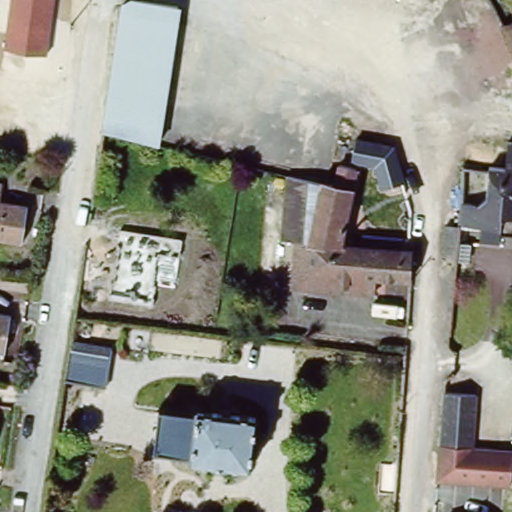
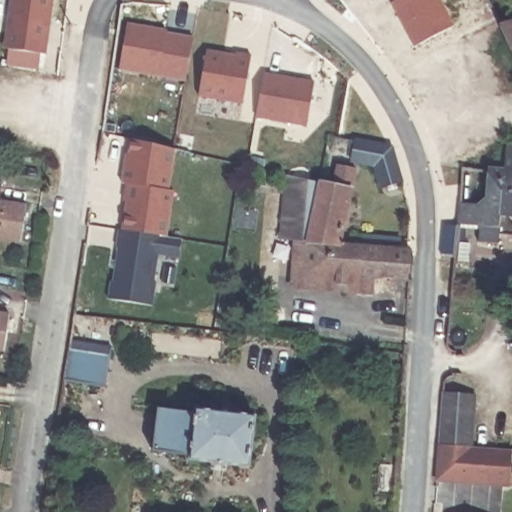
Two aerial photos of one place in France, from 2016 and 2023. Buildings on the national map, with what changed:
unchanged [(10,0),(53,0),(47,54),(4,49),(10,0)]
demolished [(256,0),(282,0),(280,9),(255,5),(256,0)]
new [(414,47),(391,3),(397,0),(439,0),(453,26),(414,47)]
demolished [(177,5),(158,147),(98,134),(119,1),(177,5)]
unchanged [(512,20),(512,46),(502,24),(512,20)]
new [(127,24),(166,31),(166,33),(193,38),(186,79),(120,67),(127,24)]
new [(206,51),(235,56),(236,53),(251,56),(242,105),(198,95),(206,51)]
new [(263,74),(314,82),(306,127),(256,117),(263,74)]
unchanged [(372,166),(352,162),(356,137),(393,145),(405,182),(381,189),(372,166)]
new [(132,139),(176,150),(170,190),(127,183),(122,182),(125,165),(128,166),(132,139)]
unchanged [(470,200),(480,200),(487,201),(501,189),(496,183),(497,164),(497,162),(512,163),(512,232),(508,232),(508,240),(488,237),(490,222),(479,222),(467,220),(470,200)]
unchanged [(318,184),(333,187),(338,165),(355,169),(340,245),(306,242),(318,184)]
unchanged [(318,184),(306,242),(295,242),(281,239),(285,174),(318,184)]
unchanged [(0,198),(0,183),(2,184),(0,198)]
new [(125,211),(130,212),(131,201),(125,200),(127,183),(170,190),(174,191),(167,237),(122,229),(125,211)]
unchanged [(20,242),(0,238),(0,201),(25,205),(20,242)]
unchanged [(453,220),(467,222),(465,252),(452,251),(453,220)]
unchanged [(110,282),(114,281),(119,247),(116,246),(120,229),(181,239),(179,257),(157,254),(152,285),(155,286),(151,305),(147,303),(107,298),(110,282)]
unchanged [(360,247),(362,234),(399,237),(397,250),(411,252),(409,280),(374,277),(373,294),(300,287),(295,282),(293,280),(291,276),(295,242),(306,242),(340,245),(360,247)]
unchanged [(3,352),(0,351),(0,314),(9,316),(3,352)]
unchanged [(111,346),(105,383),(67,378),(73,338),(111,346)]
unchanged [(444,392),(475,395),(471,447),(439,445),(444,392)]
unchanged [(159,410),(196,415),(196,410),(254,417),(247,465),(191,459),(192,455),(153,450),(159,410)]
unchanged [(511,447),(508,485),(435,479),(439,445),(471,447),(511,447)]

